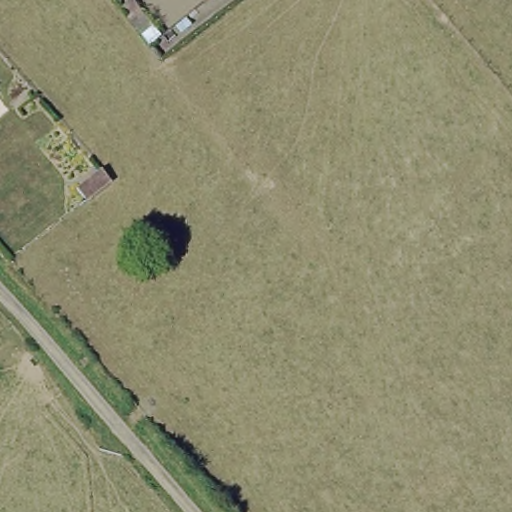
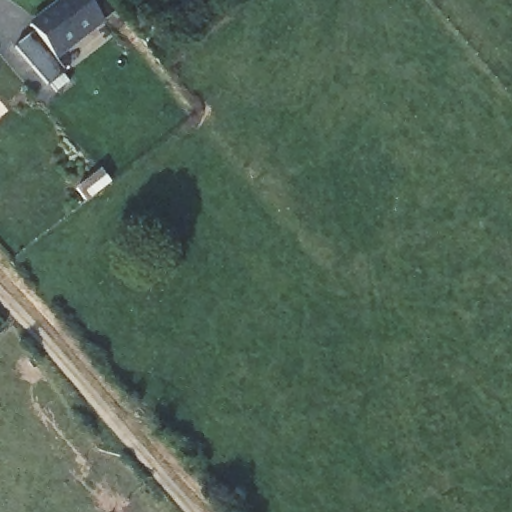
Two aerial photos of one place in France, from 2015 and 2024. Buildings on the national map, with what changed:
new [(104,22),(57,61),(64,70),(47,85),(15,47),(33,30),(29,23),(57,0),(86,0),(104,22)]
unchanged [(79,191),(102,171),(114,186),(89,206),(79,191)]

